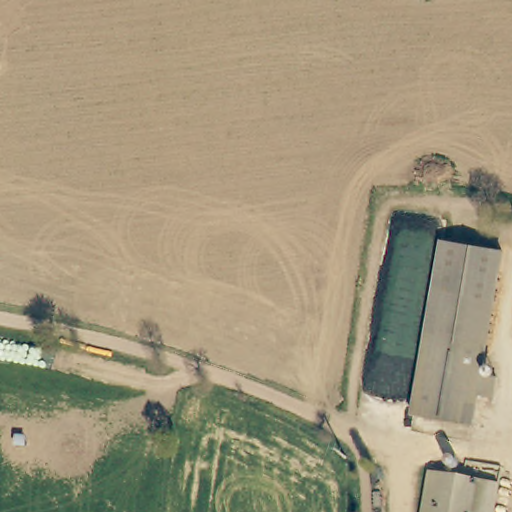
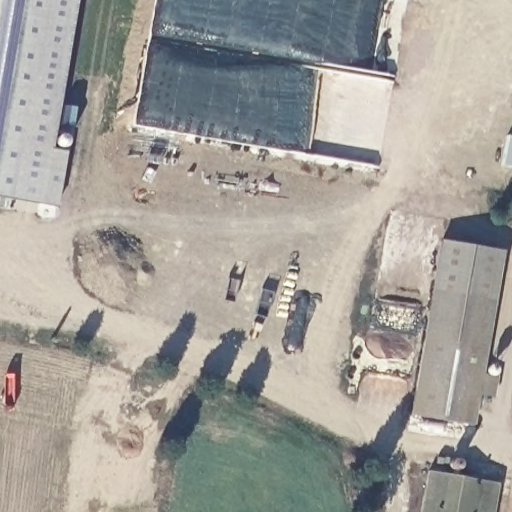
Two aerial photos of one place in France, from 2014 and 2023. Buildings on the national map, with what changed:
new [(66,151),(57,207),(0,197),(0,0),(76,0),(50,149),(66,151)]
unchanged [(426,343),(442,245),(502,255),(486,353),(426,343)]
unchanged [(486,353),(482,378),(497,379),(495,399),(479,398),(474,428),(413,418),(426,343),(486,353)]
unchanged [(425,474),(495,487),(492,512),(419,512),(425,474)]

